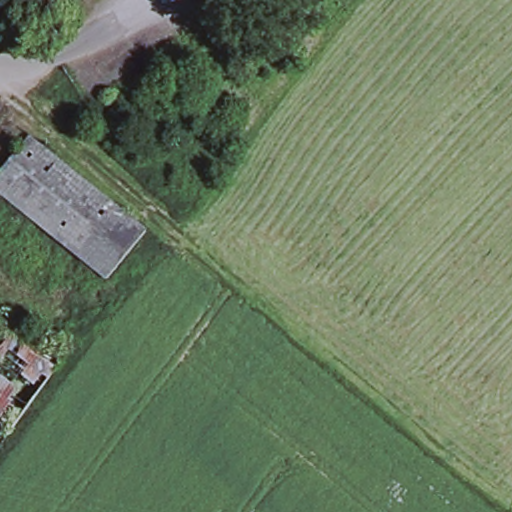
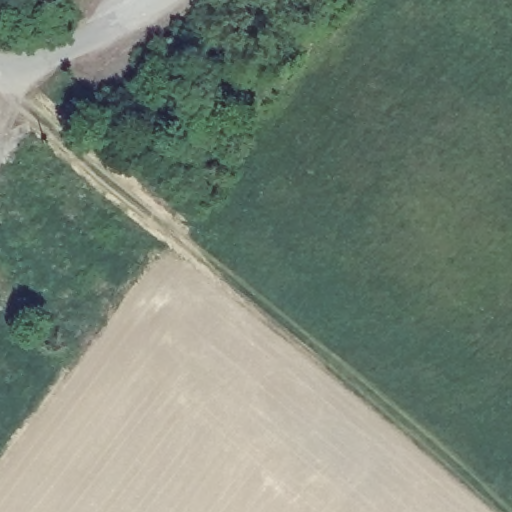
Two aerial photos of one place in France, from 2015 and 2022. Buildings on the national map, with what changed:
demolished [(0,171),(29,138),(144,232),(105,282),(0,202),(0,171)]
demolished [(0,327),(53,367),(8,440),(0,433),(0,327)]

